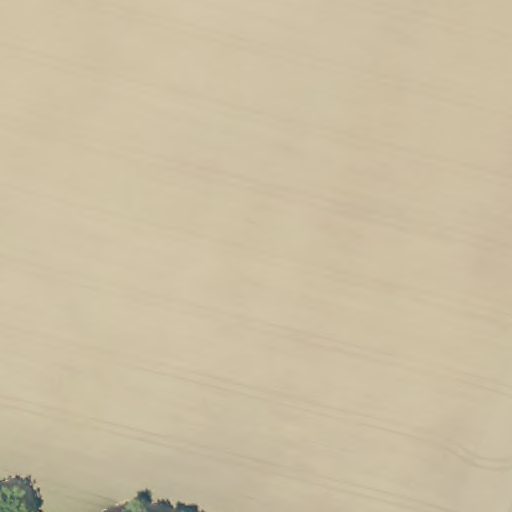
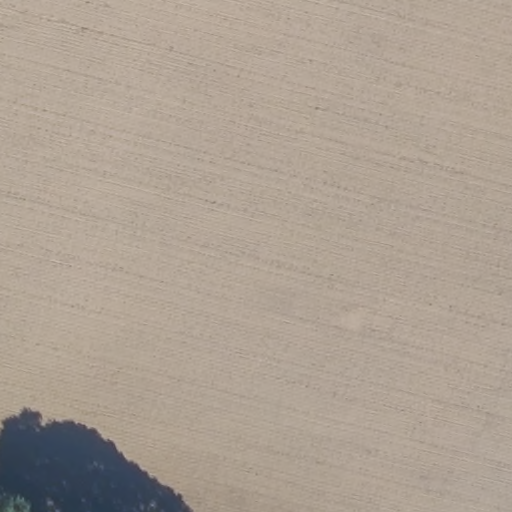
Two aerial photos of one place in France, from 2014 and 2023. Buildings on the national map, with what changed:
[]

